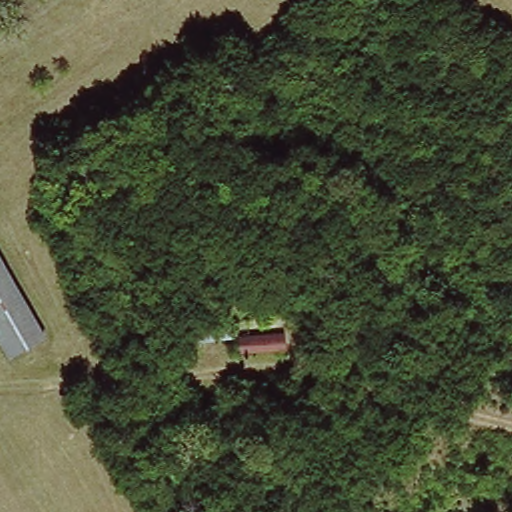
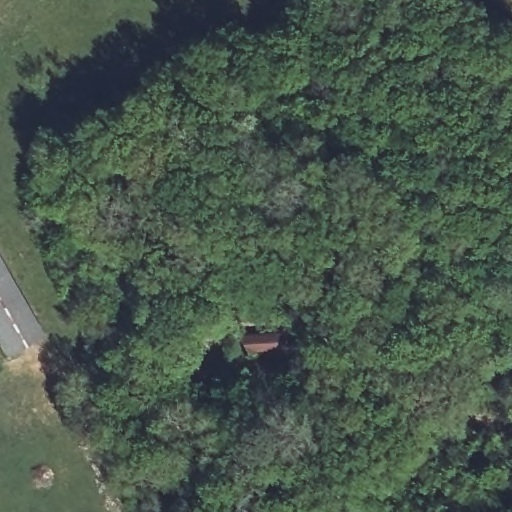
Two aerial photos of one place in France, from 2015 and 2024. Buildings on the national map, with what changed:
unchanged [(41,334),(7,356),(0,345),(0,271),(6,280),(41,334)]
unchanged [(244,293),(279,289),(288,287),(290,304),(281,305),(245,309),(244,293)]

